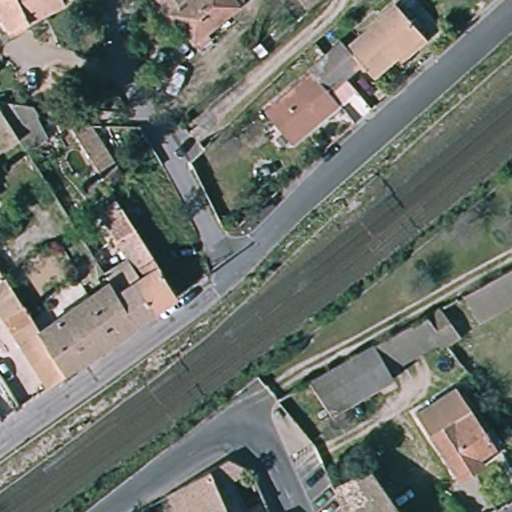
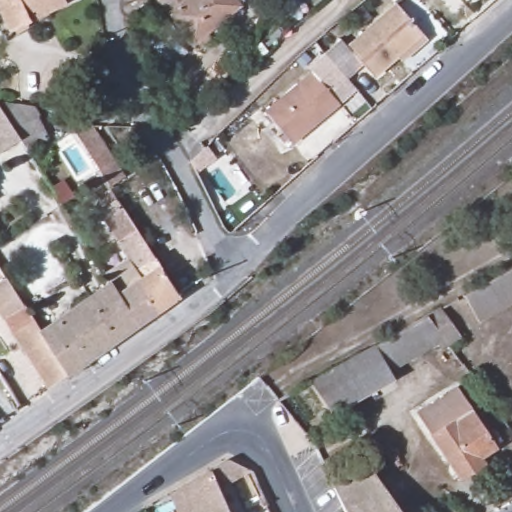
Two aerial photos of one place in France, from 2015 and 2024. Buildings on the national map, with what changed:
unchanged [(63,1),(9,29),(0,12),(0,0),(62,0),(63,1)]
unchanged [(239,6),(194,44),(157,0),(234,0),(239,6)]
unchanged [(311,77),(308,73),(323,60),(340,45),(346,51),(395,7),(422,39),(427,44),(401,66),(396,61),(372,80),(361,69),(344,84),(328,97),(339,108),(291,147),(265,116),(311,77)]
unchanged [(63,126),(41,139),(34,130),(7,146),(0,135),(0,99),(10,92),(27,117),(54,108),(63,126)]
unchanged [(91,121),(125,172),(110,182),(70,122),(91,121)]
unchanged [(157,310),(125,261),(130,257),(100,210),(117,200),(121,205),(142,238),(178,294),(157,310)]
unchanged [(136,324),(110,282),(105,275),(125,261),(157,310),(136,324)]
unchanged [(512,267),(512,304),(479,321),(465,295),(506,270),(512,267)]
unchanged [(50,385),(0,309),(0,271),(34,323),(40,332),(67,373),(50,385)]
unchanged [(67,373),(40,332),(110,282),(136,324),(67,373)]
unchanged [(440,308),(460,336),(447,345),(442,347),(440,344),(390,372),(375,345),(408,326),(426,316),(440,308)]
unchanged [(375,345),(390,372),(394,379),(332,414),(310,381),(375,345)]
unchanged [(495,446),(480,456),(483,462),(460,477),(417,411),(455,387),(495,446)]
unchanged [(178,488),(210,470),(228,459),(250,470),(218,488),(229,512),(175,512),(167,495),(178,488)]
unchanged [(370,469),(400,512),(347,512),(335,486),(370,469)]

